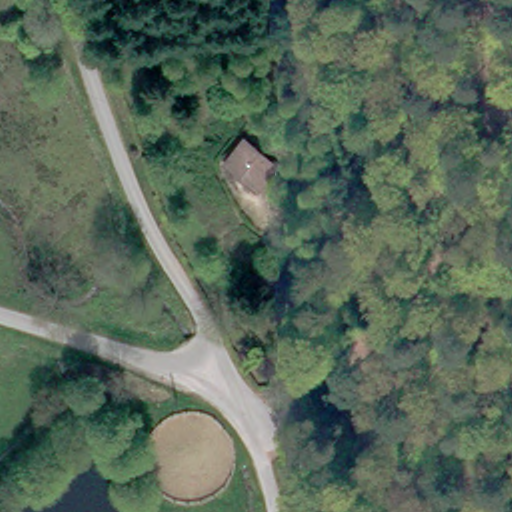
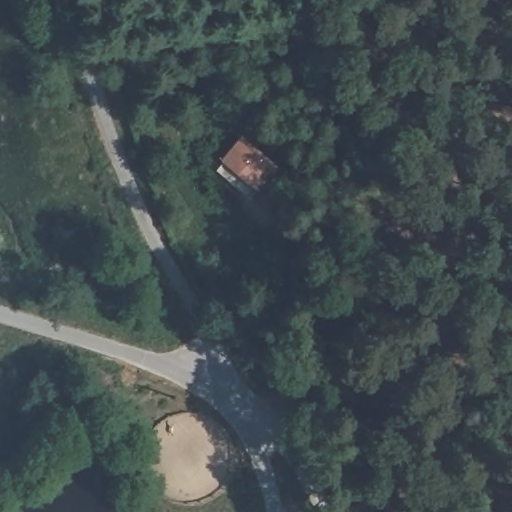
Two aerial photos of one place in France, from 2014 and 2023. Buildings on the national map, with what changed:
unchanged [(247,144),(275,167),(259,187),(230,164),(247,144)]

